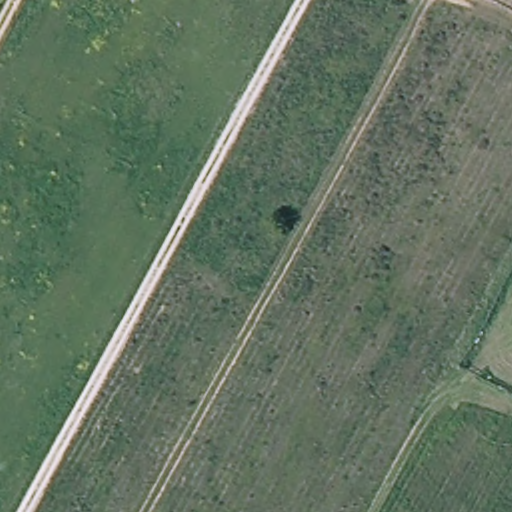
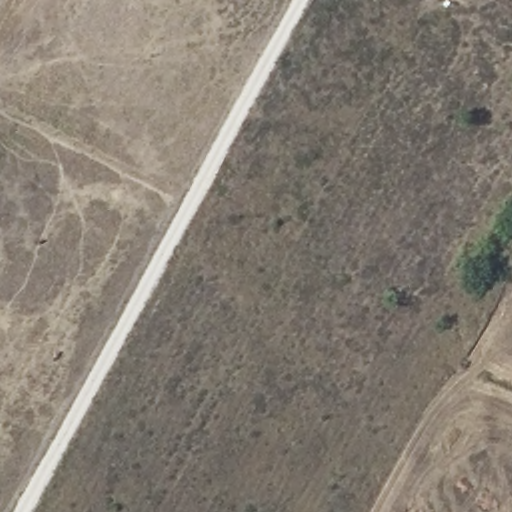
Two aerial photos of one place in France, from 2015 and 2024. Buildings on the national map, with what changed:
[]

